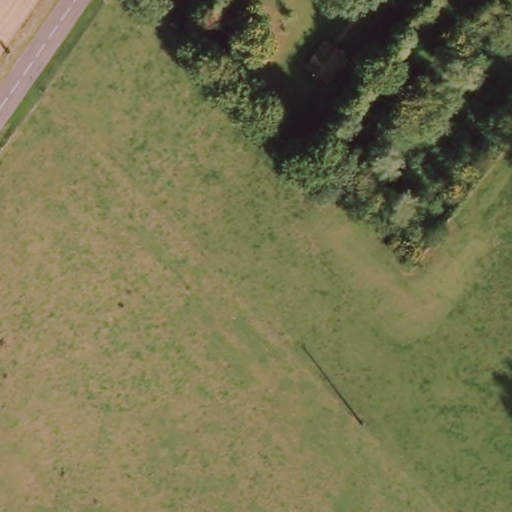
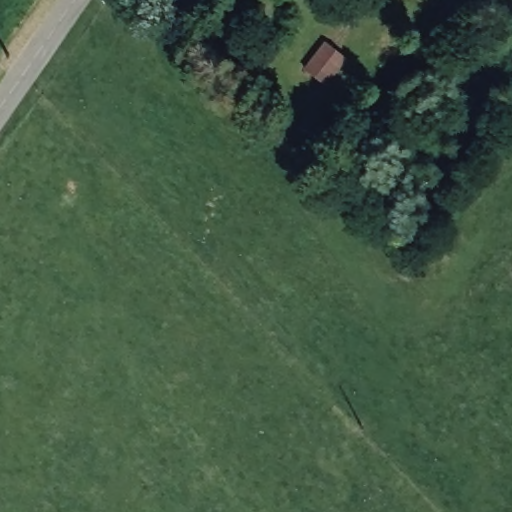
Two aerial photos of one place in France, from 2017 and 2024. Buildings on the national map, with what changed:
unchanged [(302,67),(320,44),(322,40),(342,56),(340,59),(321,82),(302,67)]

